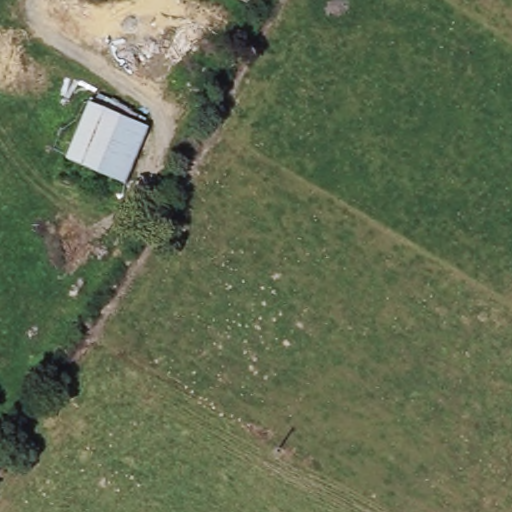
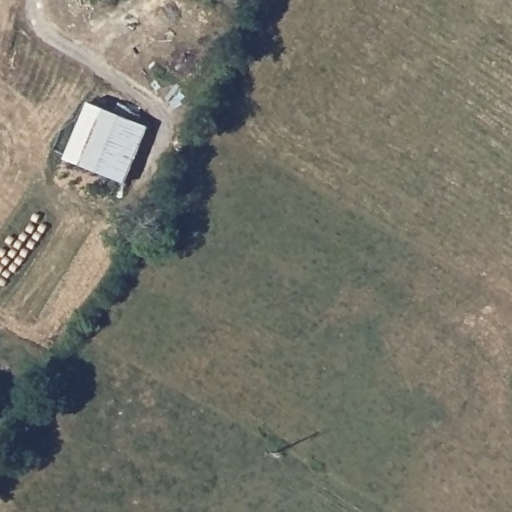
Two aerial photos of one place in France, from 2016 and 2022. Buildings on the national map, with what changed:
unchanged [(270,0),(264,11),(239,0),(270,0)]
unchanged [(91,107),(151,133),(125,185),(68,159),(91,107)]

